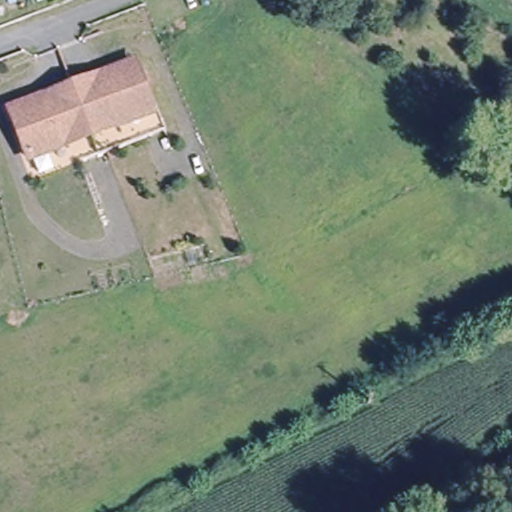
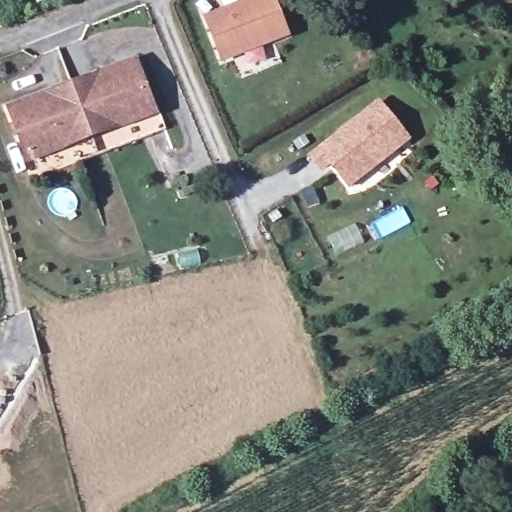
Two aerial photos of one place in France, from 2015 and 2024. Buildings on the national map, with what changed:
new [(275,0),(287,34),(223,58),(206,15),(247,0),(275,0)]
unchanged [(99,76),(136,63),(154,115),(116,128),(99,76)]
unchanged [(99,76),(116,128),(92,136),(67,145),(49,95),(73,86),(99,76)]
unchanged [(31,159),(12,107),(49,95),(67,145),(31,159)]
new [(378,101),(408,139),(348,185),(333,165),(336,163),(333,158),(321,167),(311,155),(378,101)]

